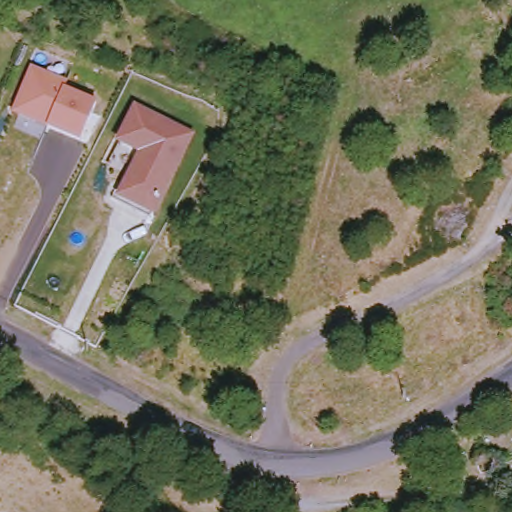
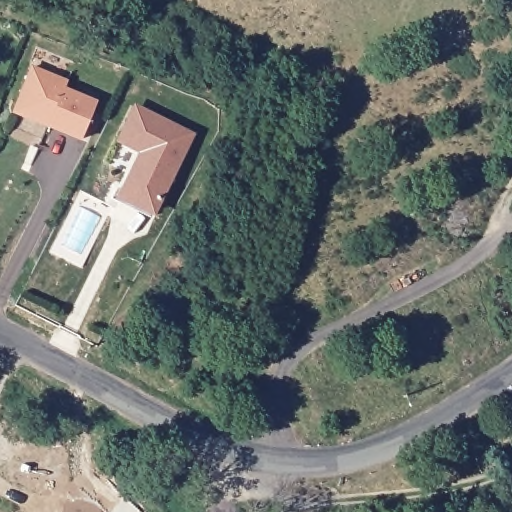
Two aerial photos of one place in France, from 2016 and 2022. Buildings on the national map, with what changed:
unchanged [(86,141),(15,113),(33,65),(70,81),(67,89),(100,101),(86,141)]
unchanged [(197,134),(159,219),(120,201),(138,154),(118,145),(136,106),(197,134)]

